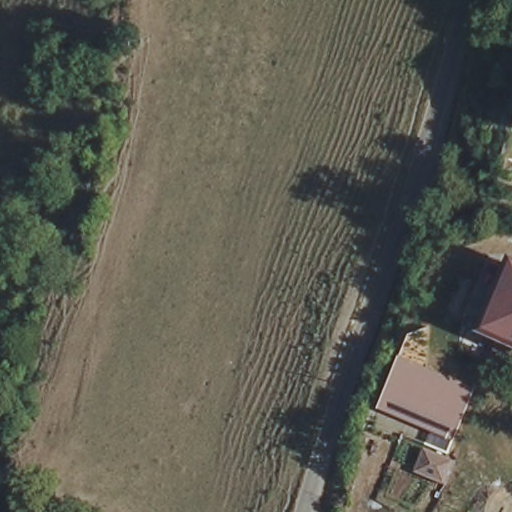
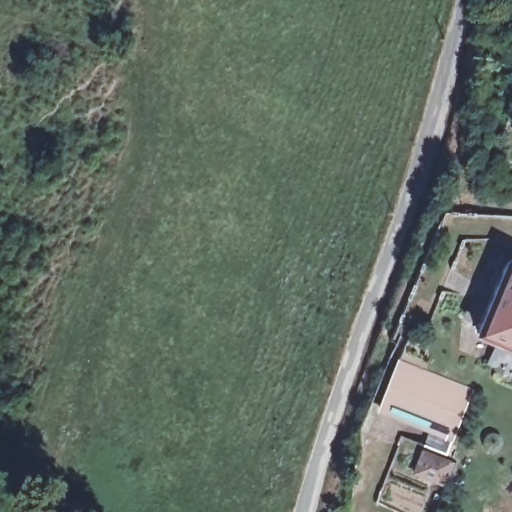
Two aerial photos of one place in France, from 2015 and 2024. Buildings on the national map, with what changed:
unchanged [(512,269),(512,350),(477,336),(505,267),(512,269)]
unchanged [(395,358),(472,390),(452,443),(373,412),(395,358)]

